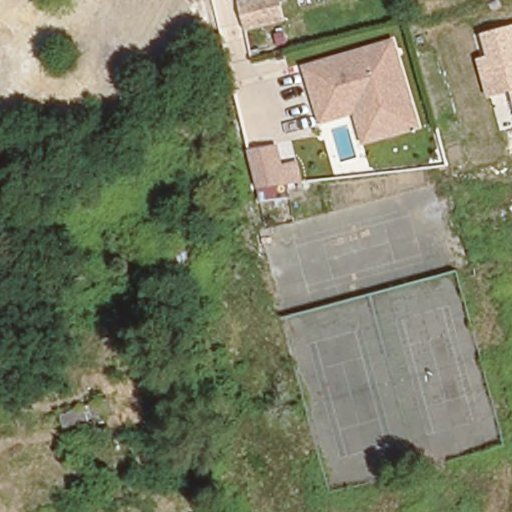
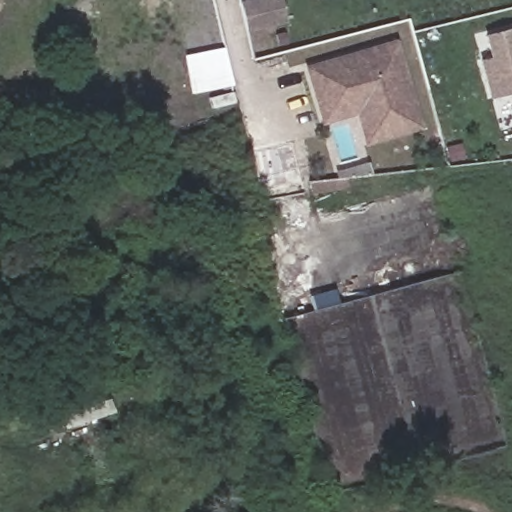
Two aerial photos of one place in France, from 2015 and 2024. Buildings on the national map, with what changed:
unchanged [(289,25),(247,35),(240,1),(245,0),(282,0),(289,25)]
unchanged [(488,97),(479,57),(488,54),(483,34),(512,26),(512,93),(511,92),(488,97)]
unchanged [(364,144),(355,115),(323,123),(305,65),(399,40),(424,129),(364,144)]
new [(184,55),(224,48),(231,86),(190,93),(184,55)]
unchanged [(260,191),(249,149),(281,143),(289,185),(260,191)]
unchanged [(106,391),(113,416),(67,431),(62,409),(106,391)]

